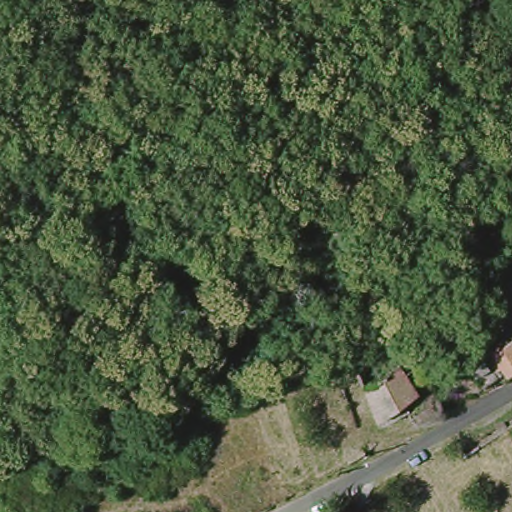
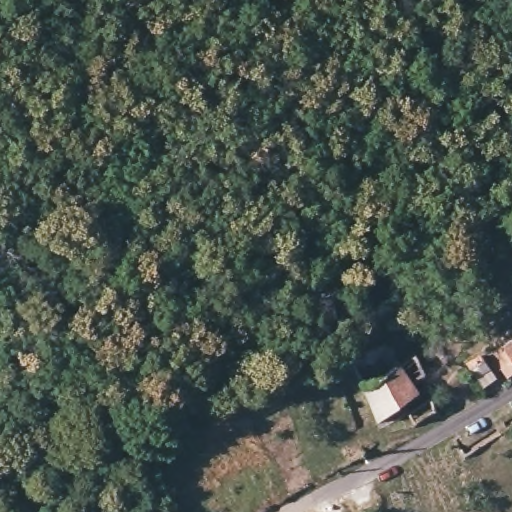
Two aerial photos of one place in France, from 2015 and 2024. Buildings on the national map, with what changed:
unchanged [(388,334),(388,335),(380,346),(371,341),(375,335),(379,328),(388,334)]
unchanged [(495,354),(512,342),(512,343),(512,366),(507,370),(495,354)]
unchanged [(432,393),(416,404),(400,414),(381,425),(352,372),(386,353),(397,371),(415,362),(427,382),(430,388),(432,393)]
unchanged [(501,369),(487,378),(478,365),(492,356),(501,369)]
unchanged [(419,426),(412,415),(435,400),(441,413),(423,425),(419,426)]
unchanged [(344,451),(360,443),(365,453),(366,456),(350,466),(344,451)]

